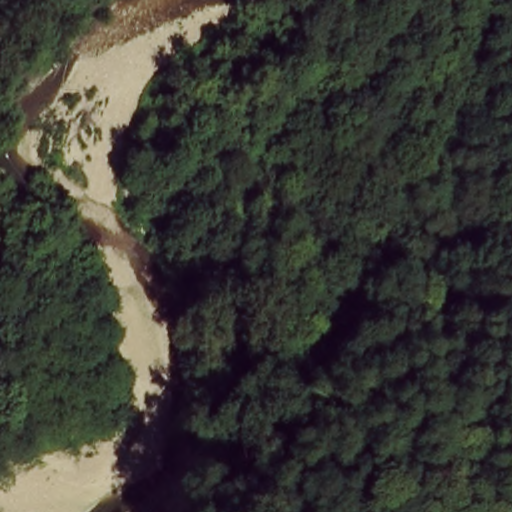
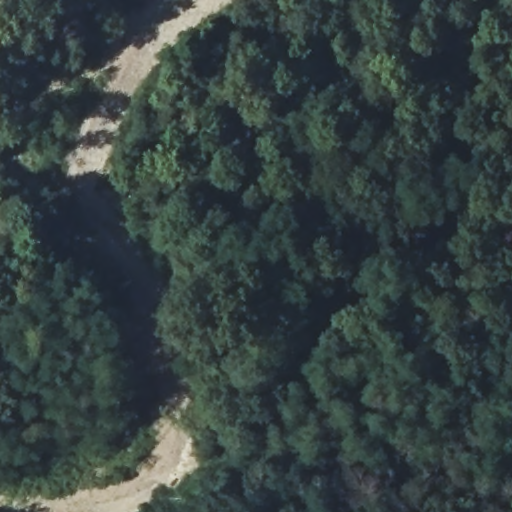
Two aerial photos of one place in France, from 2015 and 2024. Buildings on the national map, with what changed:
[]

